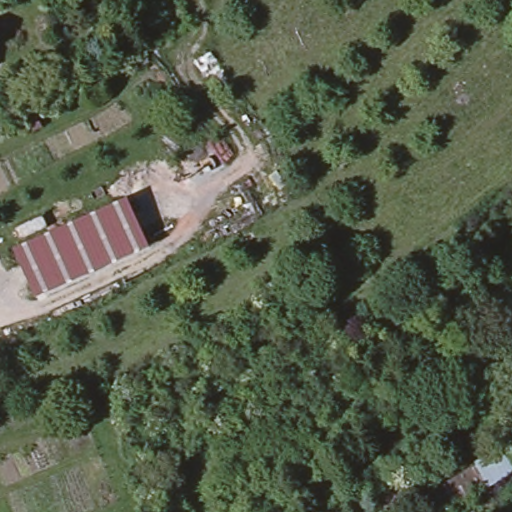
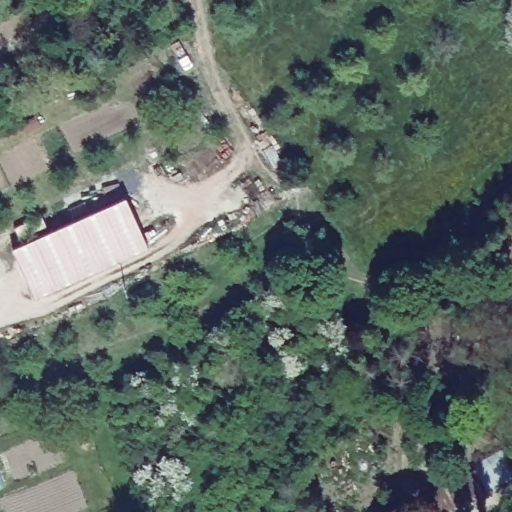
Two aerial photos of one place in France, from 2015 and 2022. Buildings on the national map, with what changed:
unchanged [(12,248),(129,197),(150,247),(35,299),(12,248)]
unchanged [(482,466),(478,460),(503,446),(512,464),(512,475),(492,486),(444,512),(437,512),(428,495),(482,466)]

